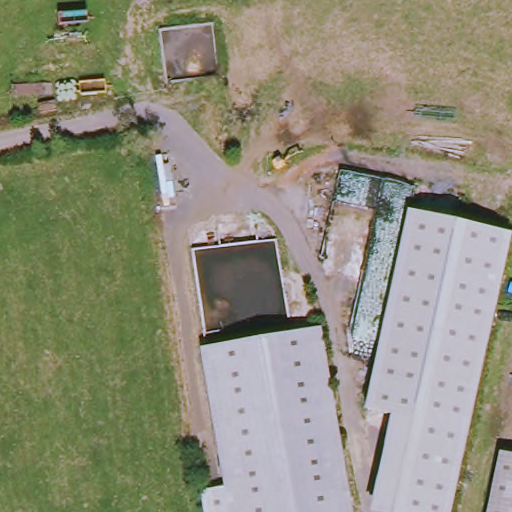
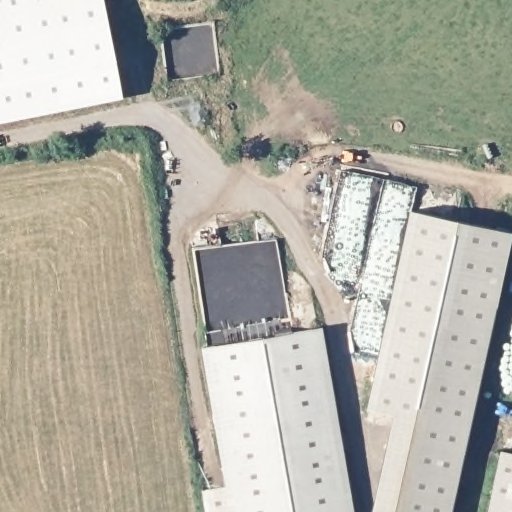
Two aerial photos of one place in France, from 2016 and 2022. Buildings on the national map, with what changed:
new [(120,101),(0,126),(0,0),(100,0),(120,101)]
unchanged [(367,405),(408,207),(511,232),(452,512),(378,512),(370,510),(390,411),(367,405)]
unchanged [(316,328),(348,512),(225,512),(197,348),(316,328)]
unchanged [(483,512),(496,449),(512,452),(512,512),(483,512)]

